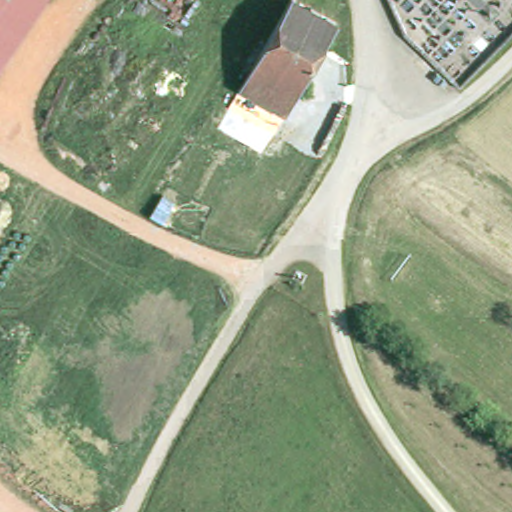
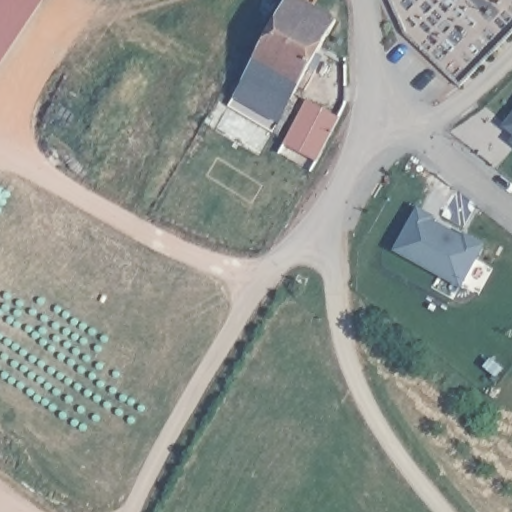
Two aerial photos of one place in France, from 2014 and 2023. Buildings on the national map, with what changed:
unchanged [(0,68),(0,0),(48,0),(0,68)]
unchanged [(292,103),(245,80),(287,0),(310,0),(336,13),(292,103)]
new [(512,113),(512,134),(502,126),(512,113)]
new [(512,139),(512,141),(511,140),(512,139)]
new [(439,217),(438,220),(465,234),(467,232),(487,244),(463,289),(392,250),(418,206),(439,217)]

